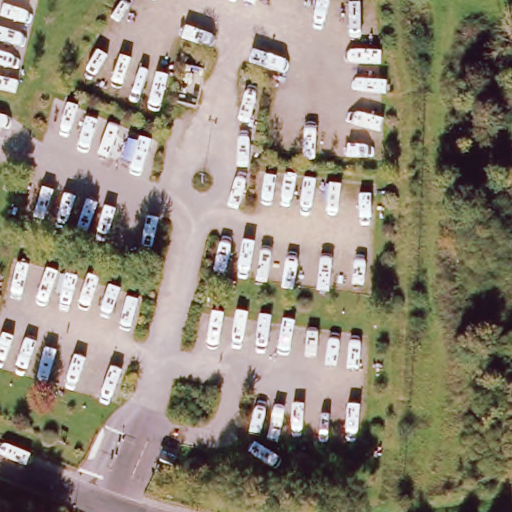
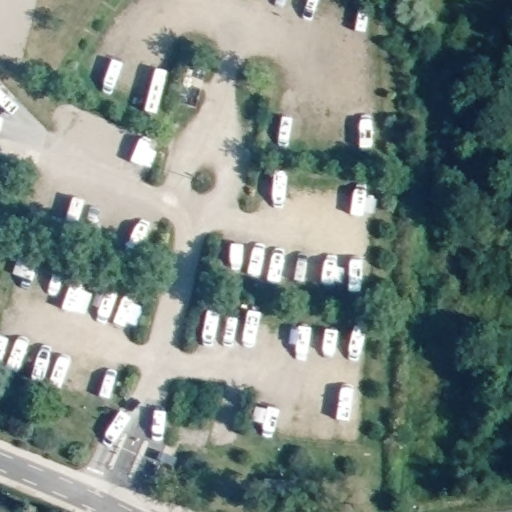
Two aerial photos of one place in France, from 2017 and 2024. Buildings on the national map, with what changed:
[]

